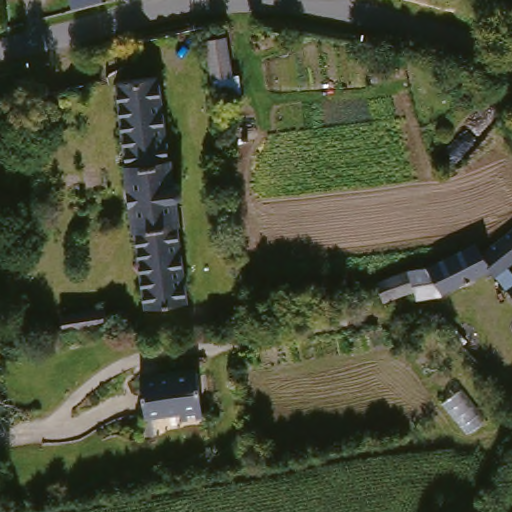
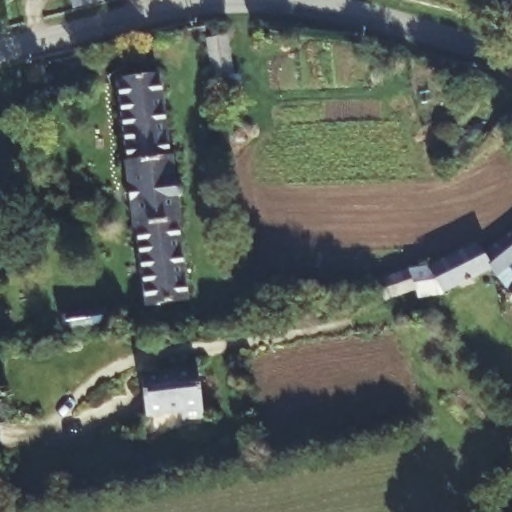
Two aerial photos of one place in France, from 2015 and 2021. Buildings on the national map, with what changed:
unchanged [(209,56),(206,33),(227,30),(232,68),(212,71),(209,56)]
unchanged [(157,66),(166,146),(169,146),(172,171),(175,171),(179,174),(180,180),(178,183),(173,187),(176,211),(174,212),(184,289),(141,297),(132,217),(129,217),(126,192),(124,177),(122,152),(124,152),(123,140),(115,71),(157,66)]
unchanged [(494,276),(492,273),(487,275),(484,271),(474,251),(512,222),(512,261),(494,276)]
unchanged [(379,282),(413,271),(428,266),(469,245),(474,251),(484,271),(441,292),(439,289),(420,295),(419,290),(384,301),(379,282)]
unchanged [(506,289),(512,285),(512,298),(506,289)]
unchanged [(105,301),(109,316),(64,324),(61,309),(105,301)]
unchanged [(199,362),(207,411),(186,415),(184,404),(149,409),(143,371),(199,362)]

